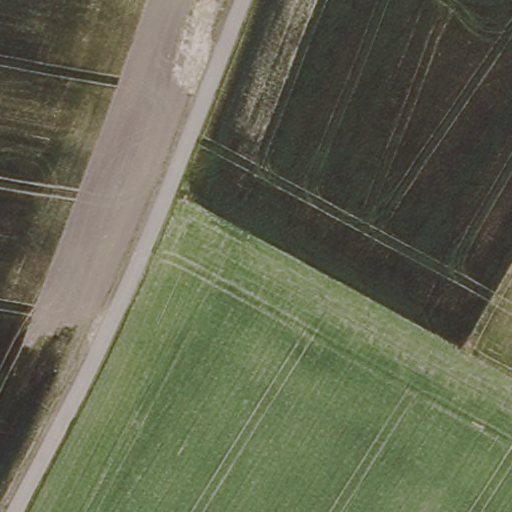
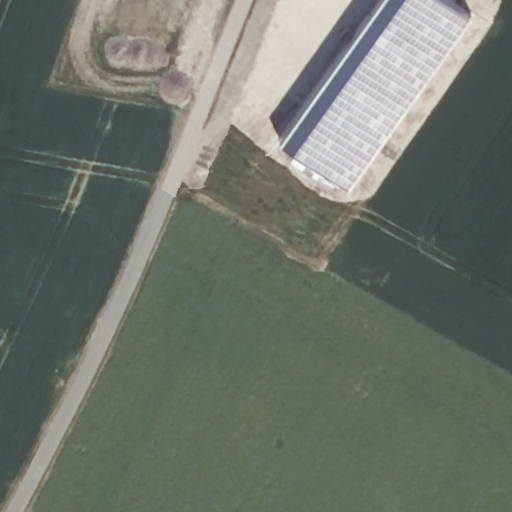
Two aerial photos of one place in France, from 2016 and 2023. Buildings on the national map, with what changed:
new [(376,0),(452,0),(470,13),(346,185),(279,138),(376,0)]

